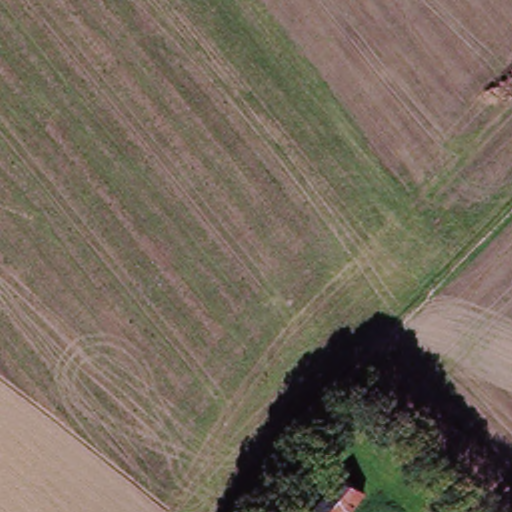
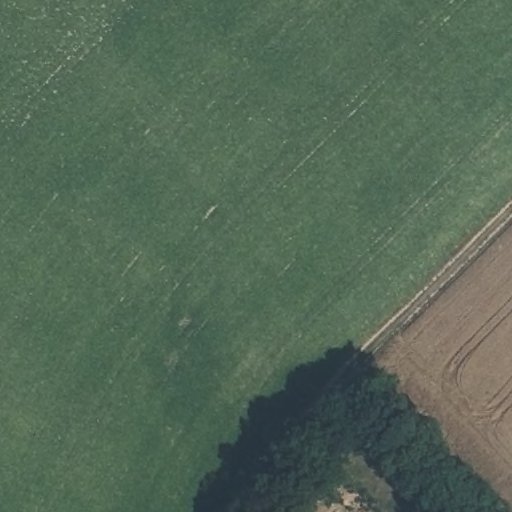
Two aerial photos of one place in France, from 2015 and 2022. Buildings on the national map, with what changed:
unchanged [(348,482),(368,499),(357,512),(323,512),(348,482)]

